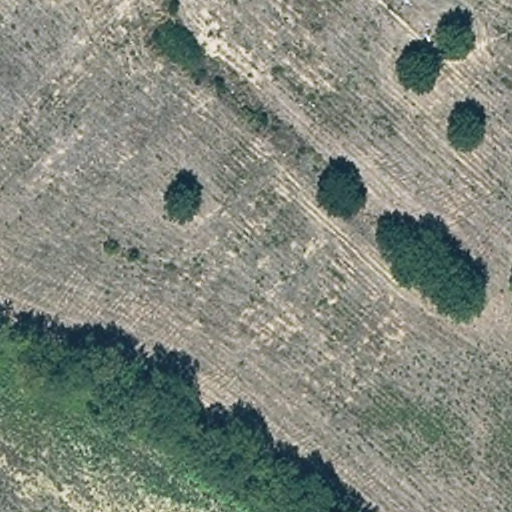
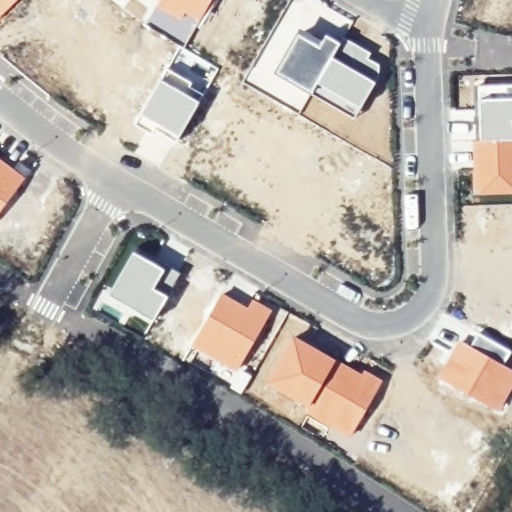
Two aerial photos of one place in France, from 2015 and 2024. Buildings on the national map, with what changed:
new [(17,0),(0,17),(0,0),(17,0)]
new [(212,0),(199,23),(184,14),(181,20),(153,4),(156,0),(212,0)]
new [(153,4),(181,20),(184,14),(199,23),(186,45),(143,20),(153,4)]
new [(309,94),(273,72),(298,30),(319,42),(326,32),(343,42),(346,37),(371,52),(369,57),(382,65),(376,82),(354,119),(309,94)]
new [(181,46),(219,68),(203,98),(159,77),(181,46)]
new [(159,77),(203,98),(175,143),(134,122),(159,77)]
new [(512,82),(512,139),(477,139),(477,84),(512,82)]
new [(512,139),(512,192),(473,194),(471,139),(477,139),(512,139)]
new [(26,177),(0,212),(0,156),(26,177)]
new [(133,249),(168,269),(170,266),(181,272),(172,287),(161,280),(156,286),(169,295),(153,320),(107,293),(133,249)]
new [(221,292),(246,305),(251,297),(273,310),(239,367),(253,376),(241,394),(227,386),(236,372),(190,347),(221,292)]
new [(477,331),(512,350),(512,353),(506,364),(510,367),(512,363),(512,389),(499,412),(436,378),(460,337),(469,343),(477,331)]
new [(292,334),(337,358),(306,409),(264,382),(292,334)]
new [(306,409),(337,358),(361,372),(364,368),(383,380),(349,438),(304,412),(306,409)]

